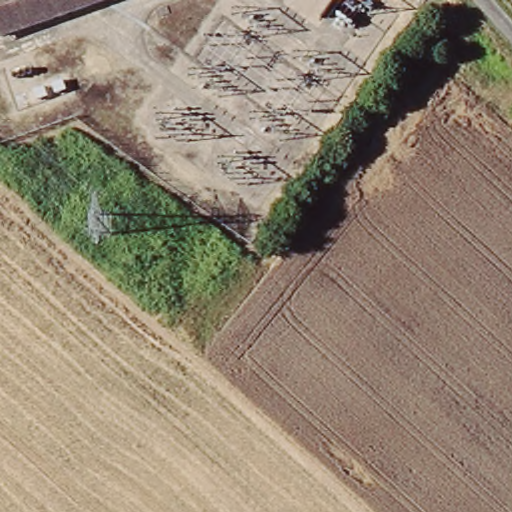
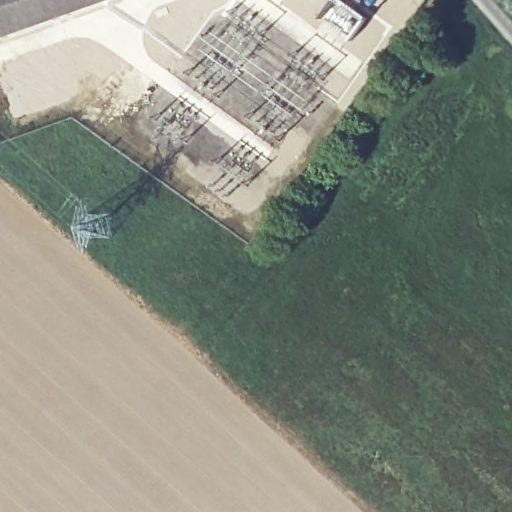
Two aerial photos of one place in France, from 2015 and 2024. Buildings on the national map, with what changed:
unchanged [(80,0),(0,28),(0,0),(80,0)]

